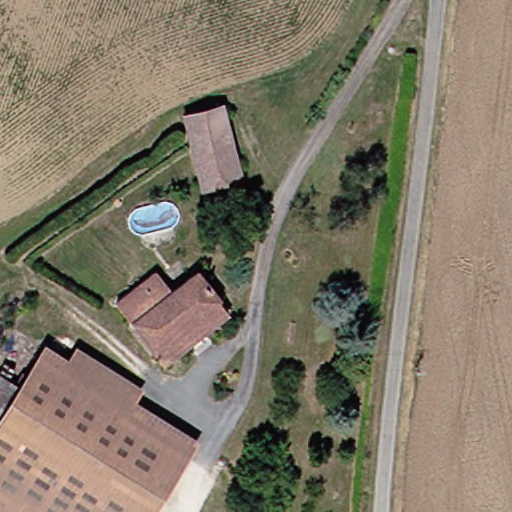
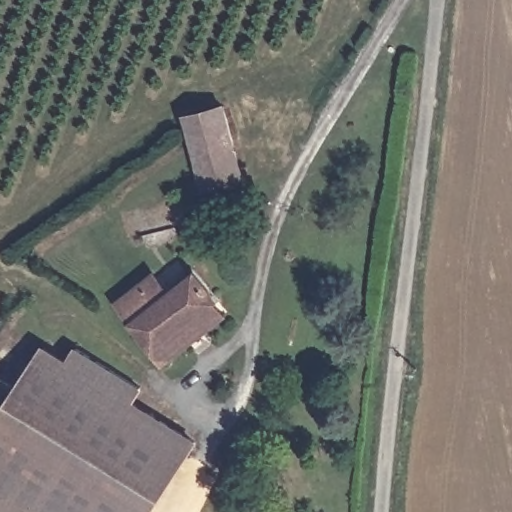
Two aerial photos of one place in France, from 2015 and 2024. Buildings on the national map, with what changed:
unchanged [(207,186),(204,178),(186,113),(224,103),(241,167),(243,176),(207,186)]
unchanged [(183,352),(164,367),(155,354),(119,306),(147,285),(159,276),(172,295),(201,276),(219,302),(229,316),(183,352)]
unchanged [(76,349),(141,386),(132,401),(67,364),(76,349)]
unchanged [(67,364),(132,401),(197,438),(157,512),(37,512),(0,491),(0,380),(19,391),(42,350),(67,364)]

